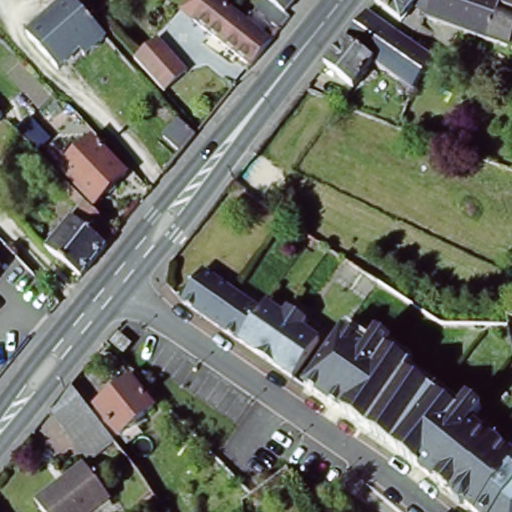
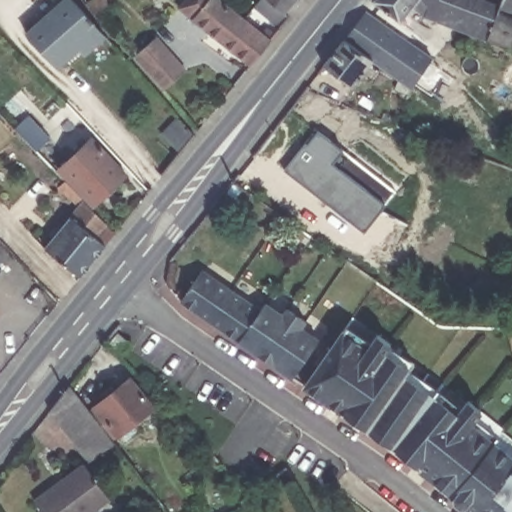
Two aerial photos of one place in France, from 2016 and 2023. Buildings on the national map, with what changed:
unchanged [(77,48),(55,68),(25,34),(63,0),(70,0),(103,36),(89,50),(83,55),(77,48)]
unchanged [(212,40),(192,24),(210,0),(212,0),(232,15),(237,19),(244,25),(261,38),(267,32),(275,39),(270,45),(265,52),(257,63),(250,70),(224,50),(212,40)]
unchanged [(302,1),(300,4),(297,2),(285,18),(290,22),(280,34),(253,13),(255,11),(264,0),(303,0),(302,1)]
unchanged [(425,13),(414,5),(400,21),(373,1),(375,0),(483,0),(499,6),(512,11),(512,47),(487,37),(437,17),(425,13)]
unchanged [(499,6),(501,0),(512,0),(512,11),(499,6)]
unchanged [(395,91),(399,83),(372,64),(344,44),(367,15),(433,62),(412,93),(410,92),(409,97),(395,91)]
unchanged [(157,83),(147,70),(142,65),(140,63),(137,59),(133,56),(156,36),(186,70),(163,90),(157,83)]
unchanged [(344,44),(372,64),(352,91),(323,70),(344,44)]
unchanged [(0,119),(0,112),(3,116),(0,119)]
unchanged [(159,133),(175,113),(196,132),(180,151),(159,133)]
new [(306,142),(308,143),(318,130),(397,192),(365,232),(285,170),(306,142)]
unchanged [(90,207),(55,171),(92,137),(125,171),(90,207)]
unchanged [(77,278),(65,267),(53,258),(43,249),(82,202),(112,235),(77,278)]
unchanged [(230,294),(209,324),(180,304),(200,274),(230,294)]
unchanged [(300,329),(274,368),(256,355),(238,343),(209,324),(230,294),(259,313),(264,305),(282,317),(287,310),(305,322),(300,329)]
unchanged [(318,341),(292,380),(274,368),(300,329),(318,341)]
unchanged [(305,393),(338,344),(362,361),(373,346),(385,354),(380,362),(405,380),(401,387),(425,403),(446,420),(457,406),(470,416),(459,430),(507,469),(500,477),(512,487),(512,512),(467,512),(392,452),(305,393)]
unchanged [(127,443),(118,433),(112,439),(90,410),(130,378),(152,406),(131,423),(139,433),(127,443)]
unchanged [(70,384),(90,410),(112,439),(114,442),(88,461),(50,409),(70,384)]
unchanged [(110,497),(90,512),(43,512),(34,499),(83,463),(110,497)]

